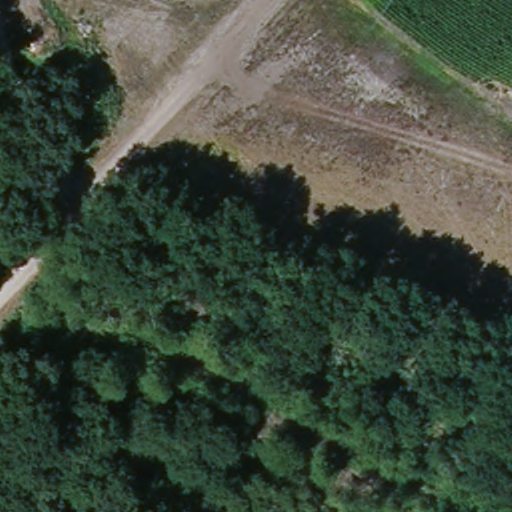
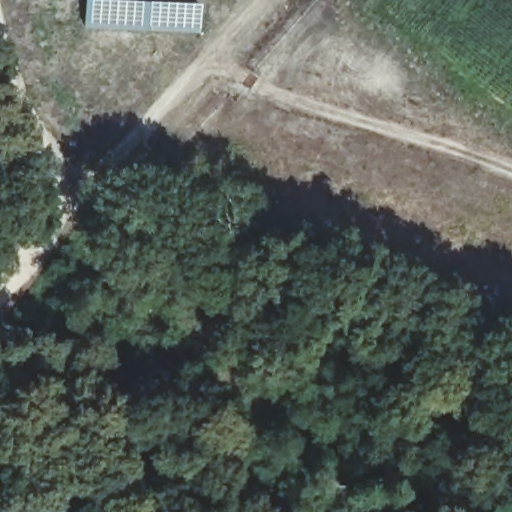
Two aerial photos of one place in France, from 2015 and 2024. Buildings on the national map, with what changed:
new [(85,0),(108,0),(201,4),(200,32),(85,27),(85,0)]

